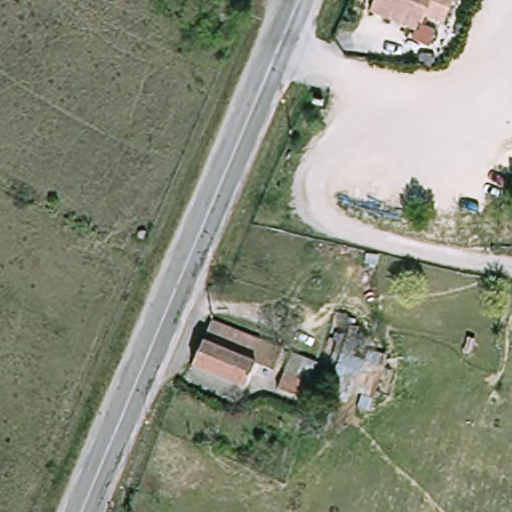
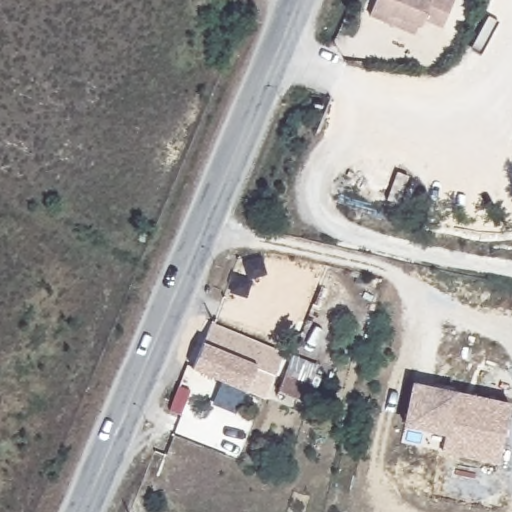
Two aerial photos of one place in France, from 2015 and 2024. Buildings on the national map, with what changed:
unchanged [(390,29),(370,20),(379,0),(444,0),(456,5),(444,32),(425,24),(422,33),(416,30),(413,39),(390,29)]
unchanged [(275,371),(261,365),(250,390),(198,367),(215,323),(284,353),(275,371)]
unchanged [(305,404),(273,390),(283,368),(295,373),(300,361),(314,367),(310,373),(317,376),(305,404)]
new [(456,391),(511,402),(497,464),(442,453),(446,435),(402,426),(411,382),(456,391)]

